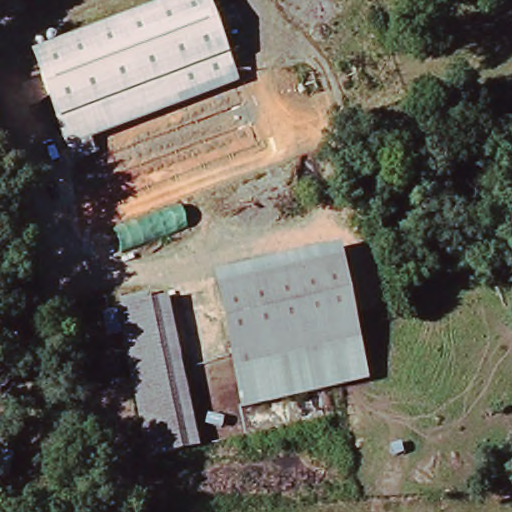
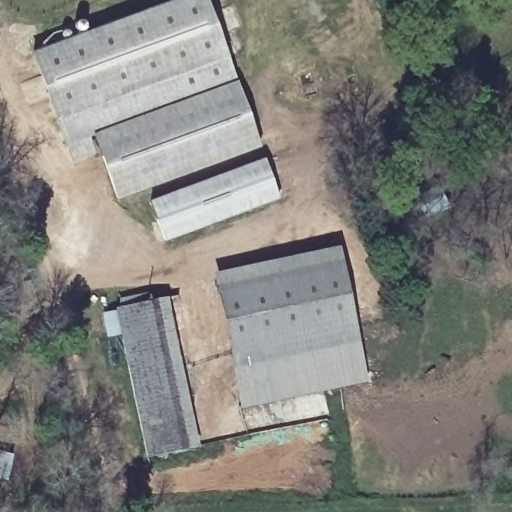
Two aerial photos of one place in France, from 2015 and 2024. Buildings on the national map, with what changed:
unchanged [(204,0),(239,85),(65,147),(30,54),(184,0),(204,0)]
new [(260,148),(117,200),(95,136),(239,85),(260,148)]
new [(265,157),(280,199),(163,242),(149,200),(265,157)]
unchanged [(220,292),(217,279),(338,250),(342,263),(220,292)]
unchanged [(370,382),(247,409),(220,292),(342,263),(370,382)]
unchanged [(160,302),(191,447),(148,457),(117,311),(160,302)]

